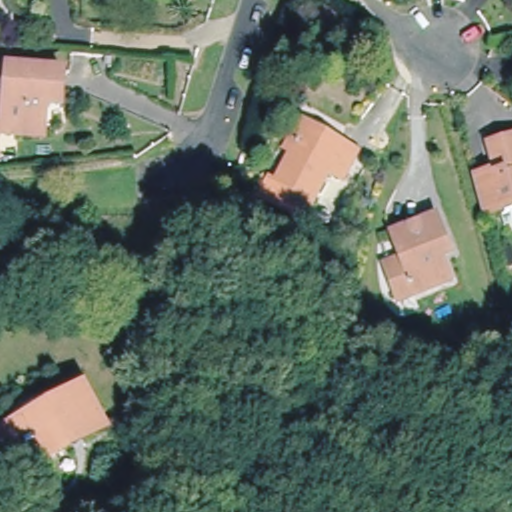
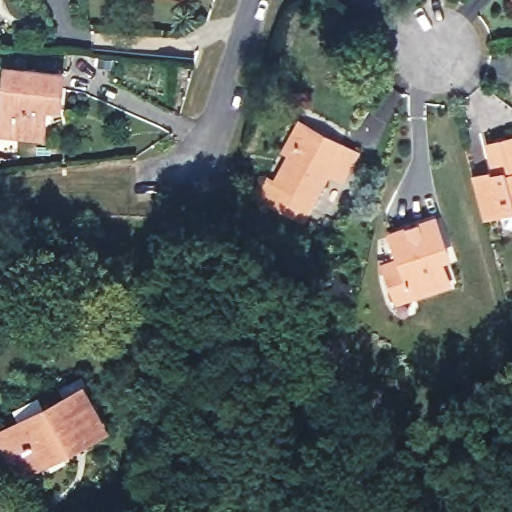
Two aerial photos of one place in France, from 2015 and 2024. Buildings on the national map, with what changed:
unchanged [(0,130),(0,108),(6,65),(59,72),(57,90),(55,105),(37,103),(35,123),(33,135),(0,130)]
unchanged [(340,144),(358,153),(344,180),(327,172),(307,208),(289,199),(293,191),(276,182),(291,152),(283,147),(297,120),(306,125),(302,132),(336,150),(340,144)]
unchanged [(471,176),(476,176),(488,175),(494,174),(491,142),(512,138),(512,210),(507,211),(496,214),(482,217),(471,176)]
unchanged [(391,291),(381,261),(398,255),(390,232),(436,217),(447,254),(441,256),(450,283),(412,294),(394,300),(391,291)]
unchanged [(81,390),(103,429),(17,476),(0,443),(0,433),(81,390)]

